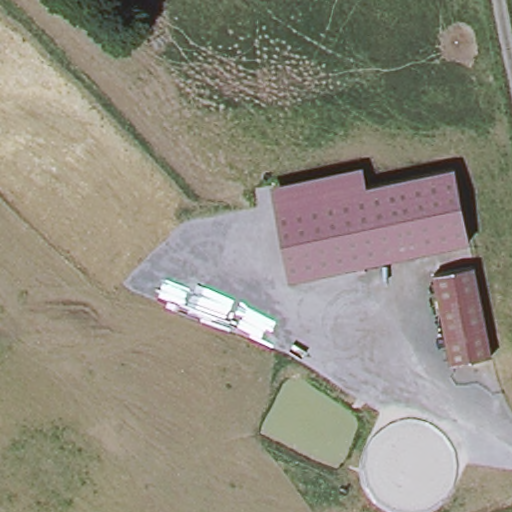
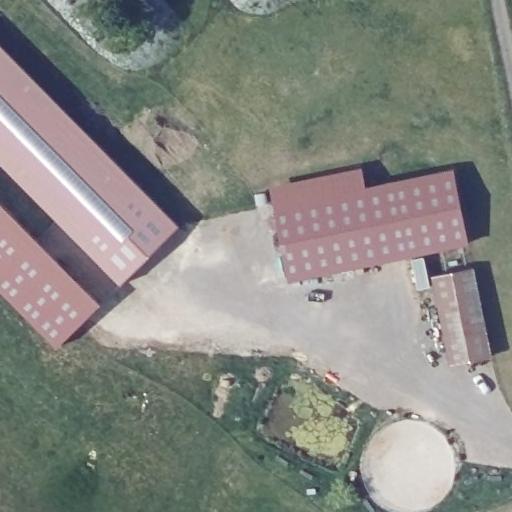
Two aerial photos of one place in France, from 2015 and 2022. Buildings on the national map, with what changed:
new [(0,42),(180,225),(122,282),(0,159),(0,42)]
unchanged [(364,169),(368,189),(454,171),(470,244),(290,281),(271,186),(364,169)]
new [(58,350),(0,292),(0,205),(100,306),(58,350)]
unchanged [(432,273),(475,264),(491,356),(447,362),(432,273)]

